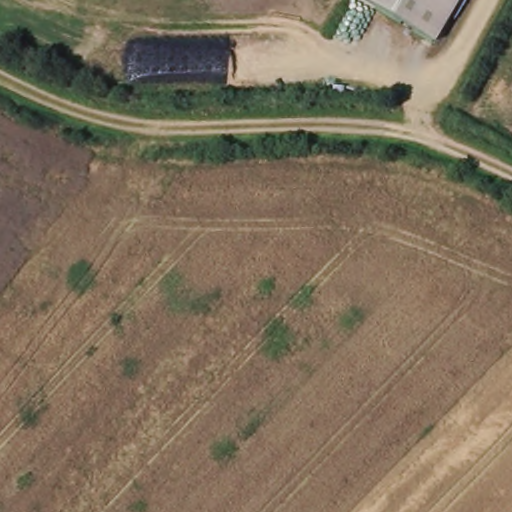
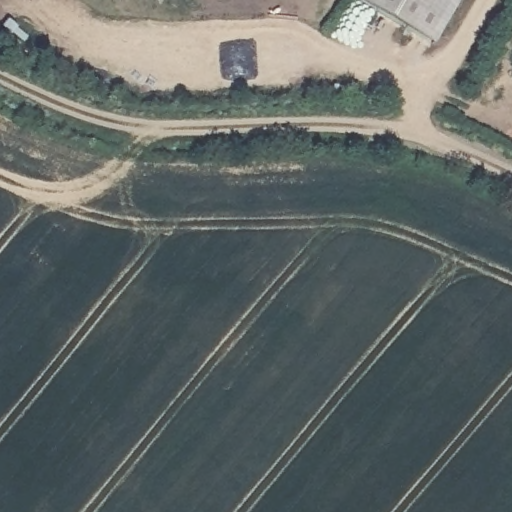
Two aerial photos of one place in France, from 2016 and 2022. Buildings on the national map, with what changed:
unchanged [(359,0),(459,0),(432,45),(359,0)]

